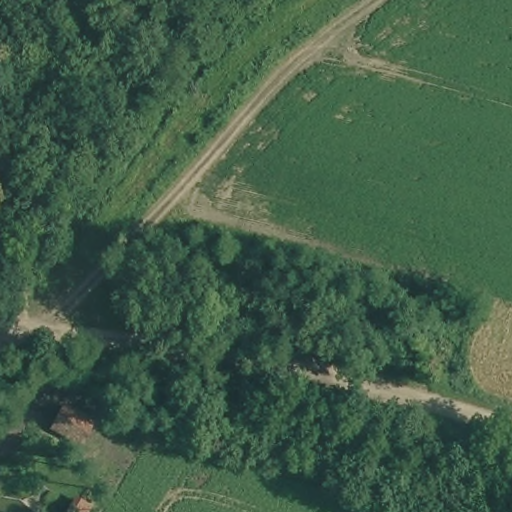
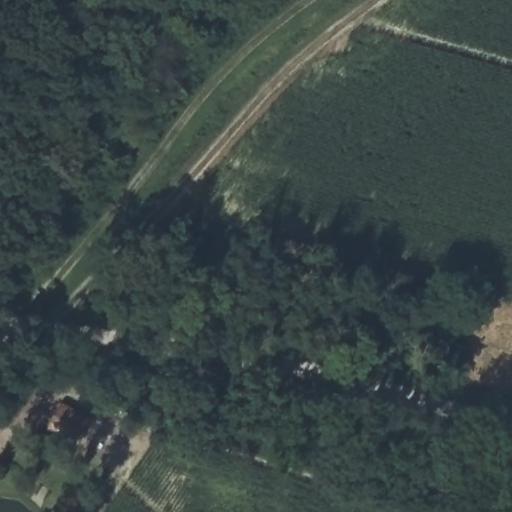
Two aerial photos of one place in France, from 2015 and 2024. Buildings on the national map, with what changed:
unchanged [(90,417),(80,436),(55,423),(64,403),(90,417)]

